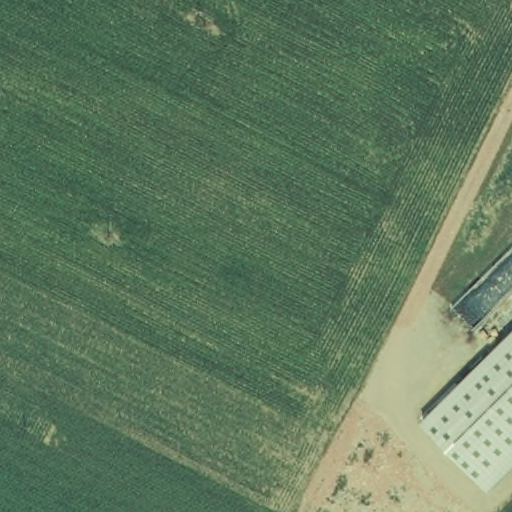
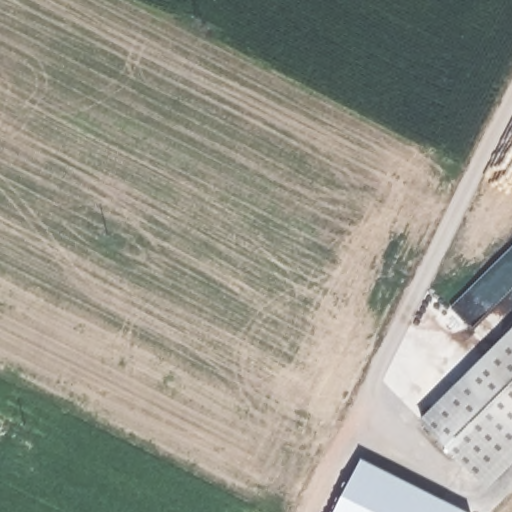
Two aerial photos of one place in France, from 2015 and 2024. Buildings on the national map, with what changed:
unchanged [(488,492),(423,423),(512,335),(512,468),(488,492)]
new [(366,462),(466,512),(340,512),(366,462)]

